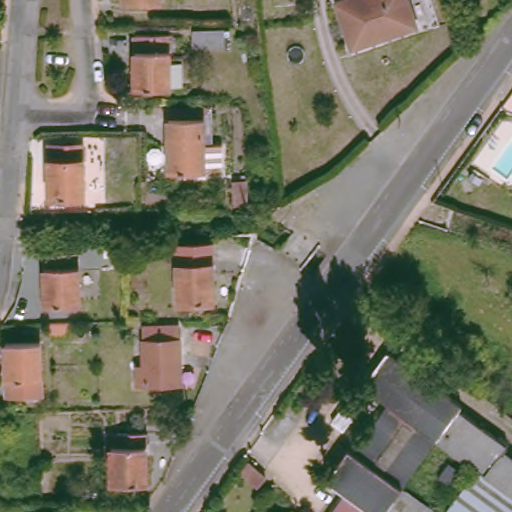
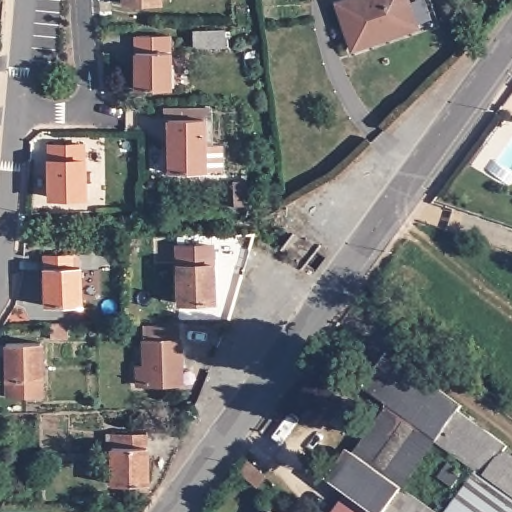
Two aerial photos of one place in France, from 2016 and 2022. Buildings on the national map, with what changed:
unchanged [(347,43),(335,0),(408,0),(415,26),(347,43)]
unchanged [(227,49),(195,48),(195,30),(227,31),(227,49)]
unchanged [(173,90),(137,90),(137,35),(173,36),(173,90)]
unchanged [(172,171),(172,119),(167,119),(167,109),(208,109),(208,119),(207,172),(172,171)]
unchanged [(87,200),(51,199),(52,145),(87,146),(87,200)]
unchanged [(212,301),(176,302),(175,279),(175,246),(212,246),(212,301)]
unchanged [(81,305),(46,306),(44,254),(78,253),(81,305)]
unchanged [(179,361),(180,383),(136,386),(135,367),(142,366),(141,337),(141,326),(178,325),(179,361)]
unchanged [(42,397),(7,398),(5,363),(5,343),(27,342),(41,342),(42,373),(42,397)]
unchanged [(342,491),(337,474),(352,452),(387,401),(363,383),(390,347),(421,372),(463,403),(460,408),(478,423),(508,445),(505,450),(512,456),(512,512),(379,512),(376,510),(375,512),(309,512),(342,491)]
unchanged [(148,472),(148,482),(115,483),(112,445),(120,445),(120,432),(147,431),(147,447),(148,472)]
unchanged [(250,497),(282,512),(243,512),(250,497)]

